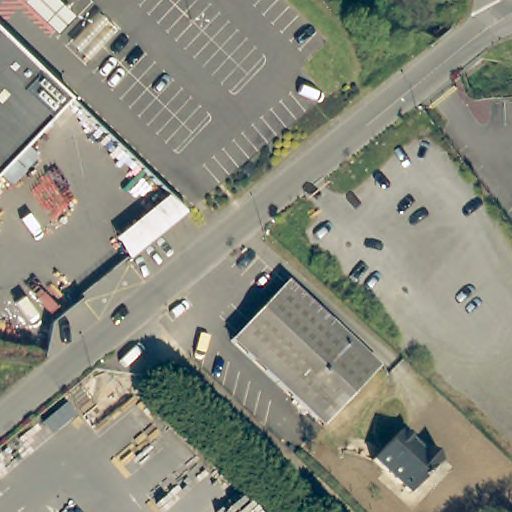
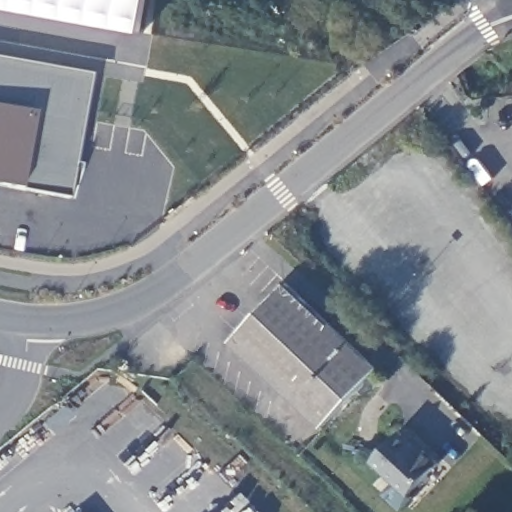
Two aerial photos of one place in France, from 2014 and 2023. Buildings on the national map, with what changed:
demolished [(13,156),(0,169),(0,41),(64,102),(13,156)]
new [(19,190),(0,186),(0,57),(93,74),(68,199),(19,190)]
demolished [(128,257),(113,239),(167,195),(182,212),(128,257)]
unchanged [(323,427),(233,341),(287,285),(377,371),(323,427)]
unchanged [(375,462),(400,434),(423,457),(427,452),(441,464),(436,469),(411,496),(375,462)]

